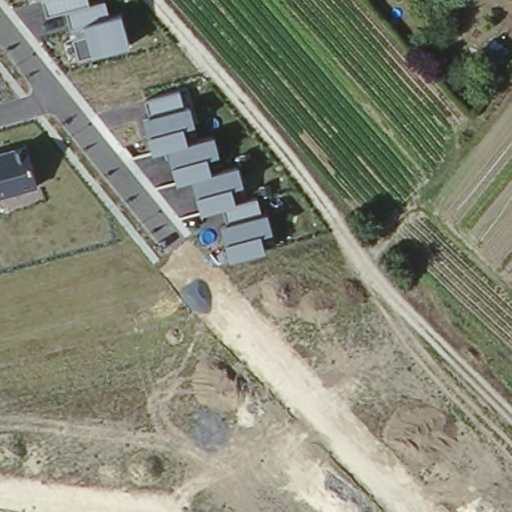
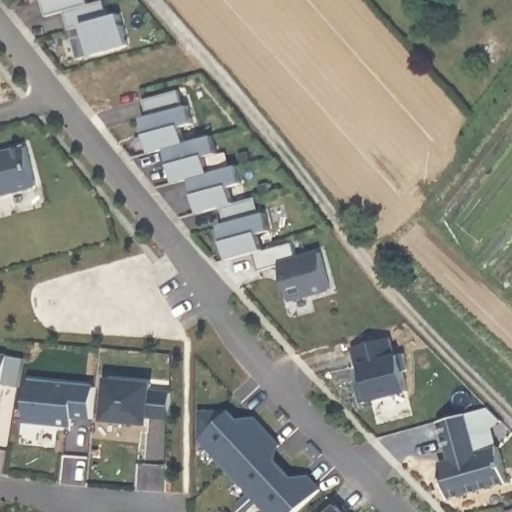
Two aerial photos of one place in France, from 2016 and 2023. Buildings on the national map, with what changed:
unchanged [(81,60),(75,38),(84,35),(80,25),(69,29),(63,9),(46,15),(41,0),(90,0),(90,3),(102,0),(105,0),(111,17),(121,15),(131,46),(81,60)]
unchanged [(229,260),(219,224),(231,220),(227,206),(201,212),(192,178),(176,182),(167,148),(151,152),(143,117),(153,114),(148,98),(179,89),(184,108),(190,105),(196,124),(184,128),(189,142),(214,135),(220,153),(208,158),(212,171),(237,164),(242,183),(232,187),(236,201),(256,195),(262,213),(268,210),(274,229),(261,233),(266,250),(229,260)]
unchanged [(38,186),(0,196),(0,152),(26,147),(38,186)]
new [(298,256),(321,250),(332,292),(291,302),(282,265),(260,270),(255,253),(266,250),(294,243),(298,256)]
new [(388,333),(394,351),(404,348),(409,365),(404,366),(409,386),(363,400),(357,380),(366,377),(361,362),(358,364),(352,344),(388,333)]
new [(21,385),(4,382),(1,401),(0,400),(0,351),(26,356),(21,385)]
new [(100,382),(98,413),(79,411),(79,420),(31,416),(35,376),(100,382)]
new [(159,380),(158,387),(178,389),(178,415),(155,413),(154,420),(111,415),(115,376),(159,380)]
new [(482,446),(503,440),(512,469),(512,476),(456,494),(444,458),(463,452),(459,444),(452,446),(443,417),(469,408),(482,446)]
new [(268,512),(200,440),(200,412),(233,411),(239,419),(256,418),(281,442),(279,459),(294,476),(312,476),(321,488),(297,512),(268,512)]
new [(330,512),(338,505),(344,512),(330,512)]

